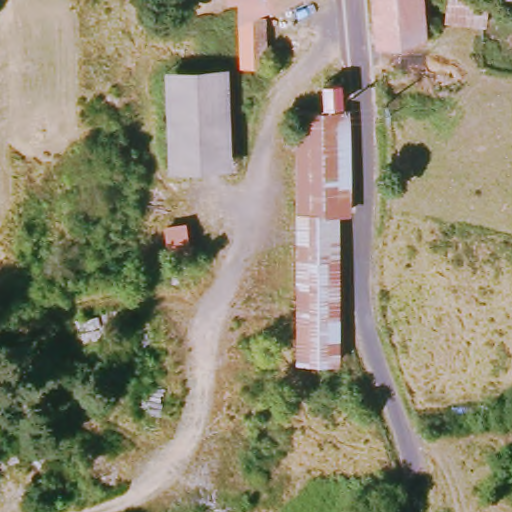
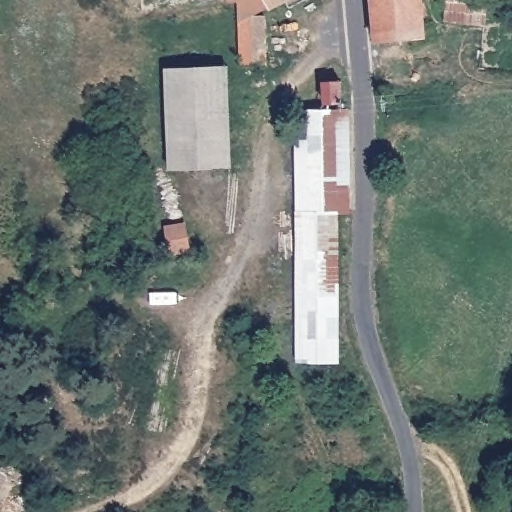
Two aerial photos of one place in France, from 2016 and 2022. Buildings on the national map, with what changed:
unchanged [(261,0),(265,9),(262,64),(237,64),(234,2),(225,3),(225,0),(261,0)]
unchanged [(265,9),(261,0),(281,0),(278,2),(265,9)]
unchanged [(374,0),(417,0),(418,38),(375,37),(374,0)]
unchanged [(442,19),(442,0),(482,0),(480,21),(442,19)]
unchanged [(223,167),(162,170),(158,67),(221,65),(223,167)]
unchanged [(330,79),(330,97),(313,101),(311,80),(330,79)]
unchanged [(326,257),(292,257),(292,235),(291,197),(290,187),(288,111),(337,109),(338,181),(339,190),(339,208),(325,209),(325,230),(326,257)]
unchanged [(181,251),(164,254),(159,229),(176,226),(181,251)]
unchanged [(326,257),(329,358),(295,359),(292,257),(326,257)]

